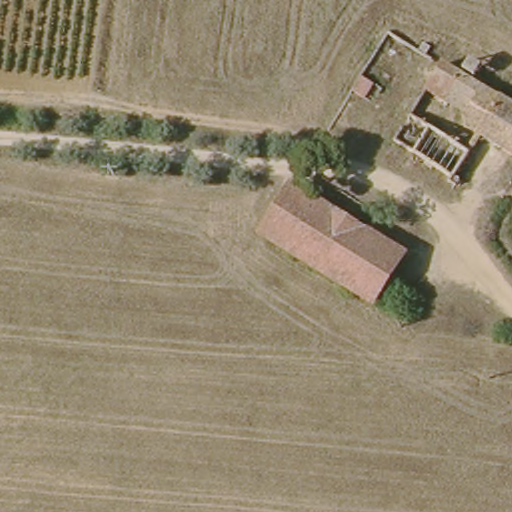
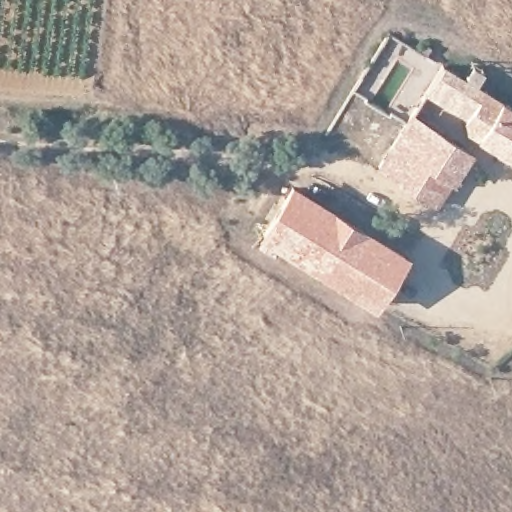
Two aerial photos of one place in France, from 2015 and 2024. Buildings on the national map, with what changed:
unchanged [(458,118),(465,106),(428,84),(440,63),(512,105),(512,149),(458,118)]
new [(471,150),(440,203),(380,166),(411,114),(471,150)]
demolished [(480,156),(467,179),(473,182),(467,193),(456,187),(459,182),(405,148),(420,122),(480,156)]
unchanged [(298,187),(408,255),(379,302),(267,237),(298,187)]

